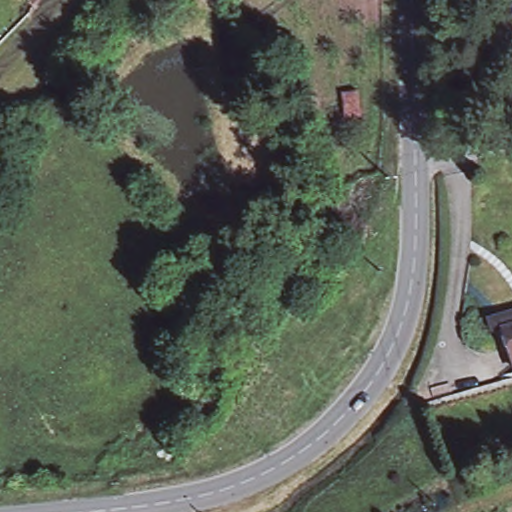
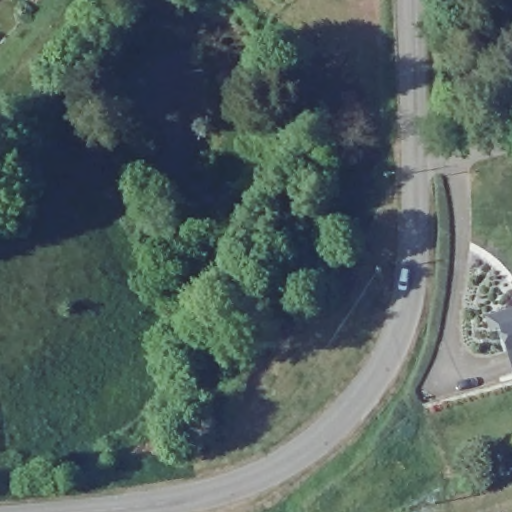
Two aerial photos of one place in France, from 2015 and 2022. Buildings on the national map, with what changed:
unchanged [(512,373),(510,374),(494,318),(512,312),(512,373)]

